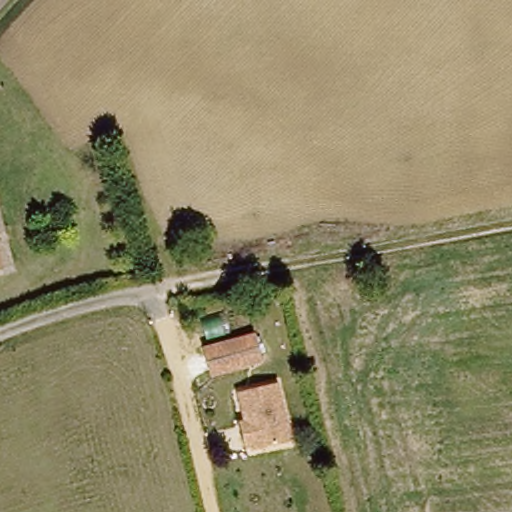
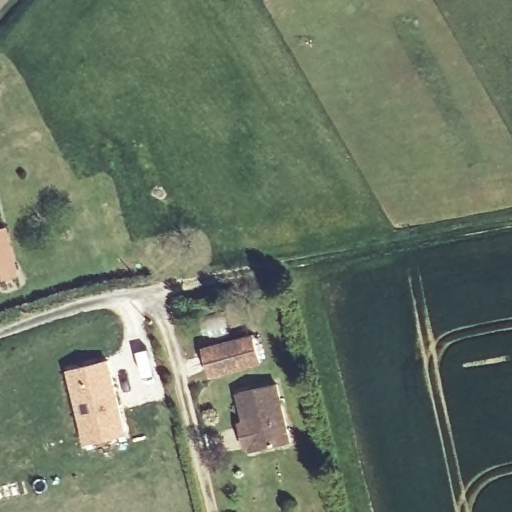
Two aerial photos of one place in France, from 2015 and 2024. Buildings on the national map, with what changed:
unchanged [(0,270),(0,264),(1,270),(0,270)]
unchanged [(261,366),(212,378),(206,351),(256,340),(261,366)]
new [(66,370),(107,360),(126,431),(84,443),(66,370)]
unchanged [(292,441),(248,452),(241,422),(246,421),(239,393),(279,385),(292,441)]

